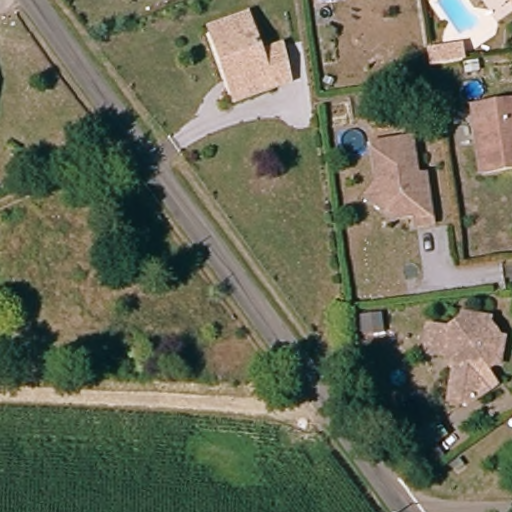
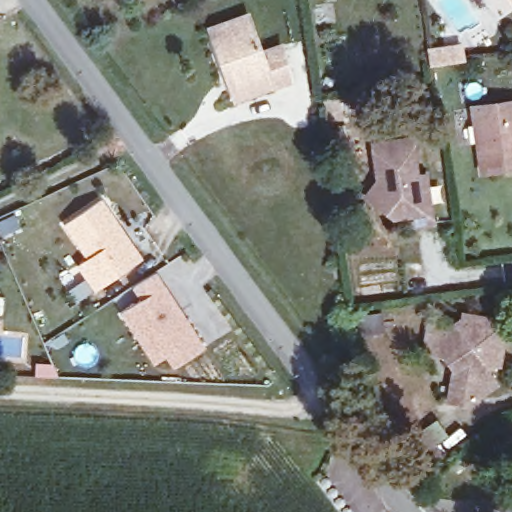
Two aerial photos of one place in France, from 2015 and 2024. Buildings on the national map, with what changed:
unchanged [(221,59),(210,29),(250,14),(264,50),(280,44),(293,79),(274,86),(237,100),(221,59)]
unchanged [(463,46),(465,59),(429,65),(427,51),(463,46)]
unchanged [(472,106),(512,100),(512,167),(481,172),(472,106)]
unchanged [(377,180),(372,143),(410,138),(416,175),(424,174),(431,223),(415,225),(414,214),(393,218),(373,202),(365,195),(377,180)]
new [(61,220),(98,195),(139,255),(102,280),(92,287),(75,262),(85,255),(61,220)]
new [(172,368),(163,356),(153,364),(119,313),(140,299),(131,289),(155,273),(206,347),(172,368)]
unchanged [(489,378),(467,393),(447,390),(453,359),(442,344),(438,344),(423,341),(428,315),(442,318),(446,319),(461,308),(462,304),(487,309),(487,313),(497,328),(501,328),(497,354),(493,353),(485,358),(496,373),(489,378)]
unchanged [(382,314),(384,331),(364,334),(362,318),(382,314)]
unchanged [(458,458),(463,464),(456,469),(451,463),(458,458)]

